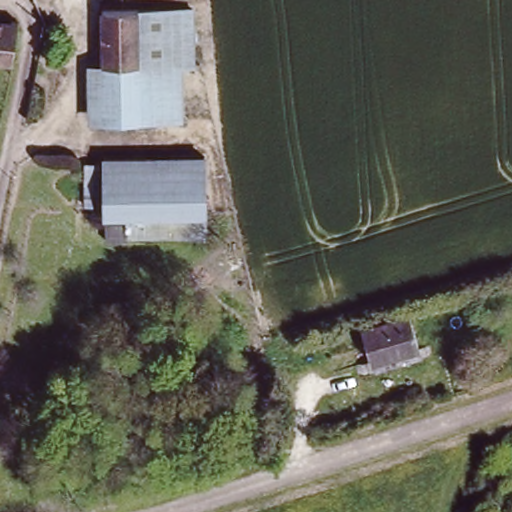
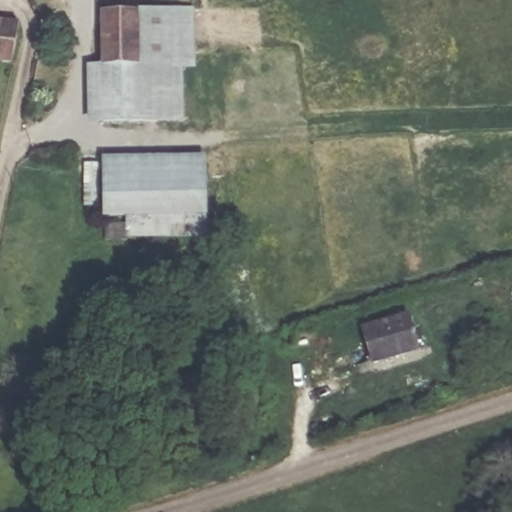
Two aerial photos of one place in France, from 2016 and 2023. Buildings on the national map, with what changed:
unchanged [(137,64),(133,10),(184,7),(187,61),(179,61),(137,64)]
unchanged [(96,12),(133,10),(137,64),(99,65),(96,12)]
unchanged [(0,21),(16,22),(11,61),(0,60),(0,21)]
unchanged [(179,61),(180,115),(101,117),(99,65),(137,64),(179,61)]
unchanged [(103,158),(205,157),(203,239),(125,240),(130,218),(102,216),(103,158)]
unchanged [(79,170),(96,170),(98,206),(81,207),(79,170)]
unchanged [(417,345),(373,359),(363,329),(407,315),(417,345)]

